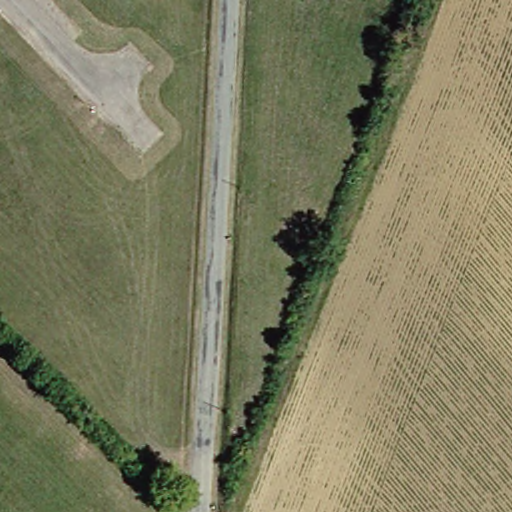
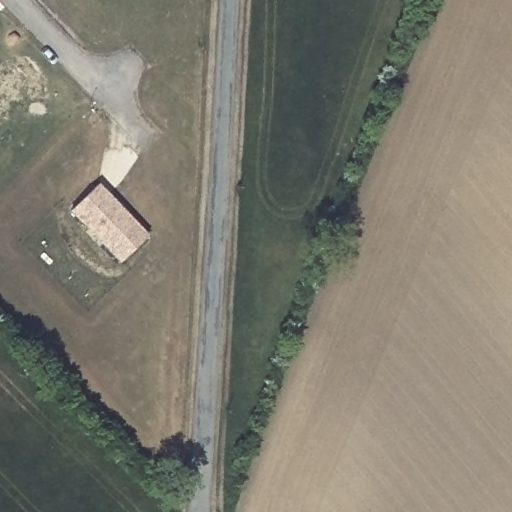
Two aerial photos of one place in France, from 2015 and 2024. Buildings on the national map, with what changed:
new [(148,235),(119,263),(70,211),(99,184),(148,235)]

